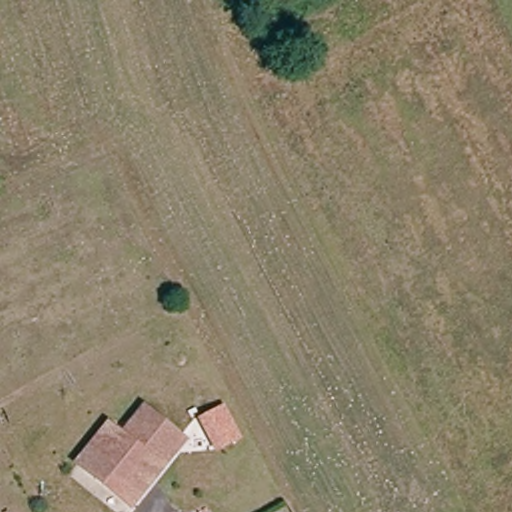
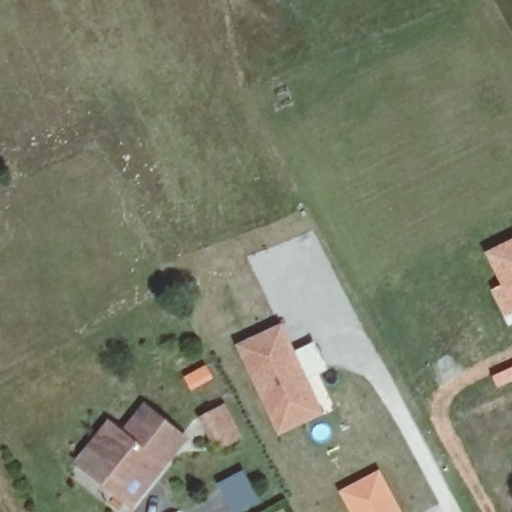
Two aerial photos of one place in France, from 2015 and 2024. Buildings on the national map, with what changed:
new [(512,238),(512,317),(505,320),(490,290),(498,285),(483,252),(512,238)]
new [(303,420),(281,431),(240,346),(280,327),(292,352),(315,341),(327,369),(305,380),(312,395),(320,412),(303,420)]
unchanged [(92,475),(81,465),(111,425),(123,435),(144,406),(184,437),(132,505),(92,475)]
new [(220,408),(224,407),(240,437),(236,439),(222,446),(217,448),(201,419),(206,416),(220,408)]
new [(244,471),(259,497),(235,510),(220,485),(244,471)]
new [(342,492),(378,473),(391,497),(399,512),(353,512),(342,492)]

